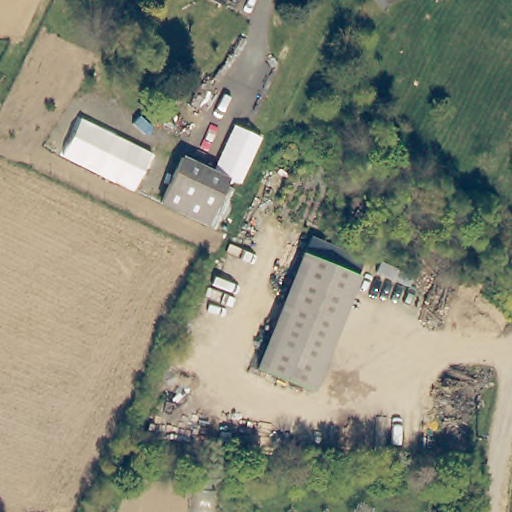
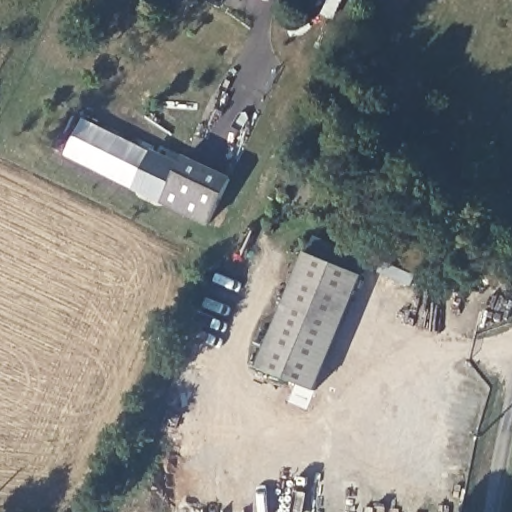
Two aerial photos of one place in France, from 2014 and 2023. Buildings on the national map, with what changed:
unchanged [(223,0),(223,1),(221,0),(223,0)]
unchanged [(161,200),(67,155),(83,117),(178,165),(161,200)]
unchanged [(161,200),(183,154),(228,175),(208,222),(161,200)]
unchanged [(311,389),(254,366),(302,250),(357,272),(311,389)]

